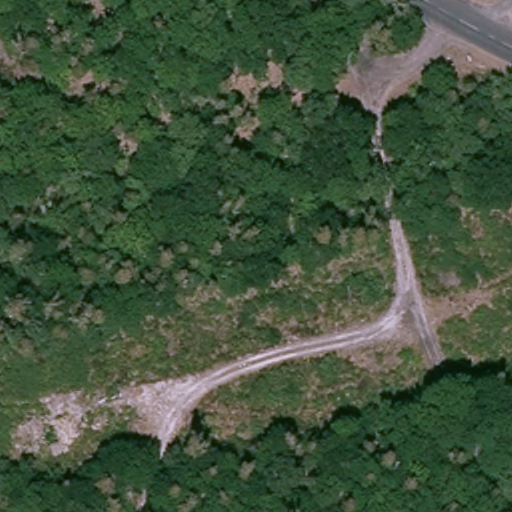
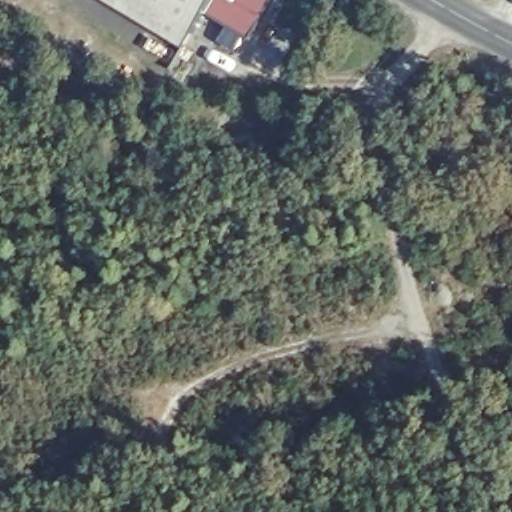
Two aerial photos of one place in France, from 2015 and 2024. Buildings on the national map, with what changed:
new [(142,21),(108,0),(147,0),(153,4),(142,21)]
new [(142,21),(153,4),(147,0),(192,0),(170,37),(142,21)]
new [(253,0),(236,29),(192,3),(194,0),(253,0)]

